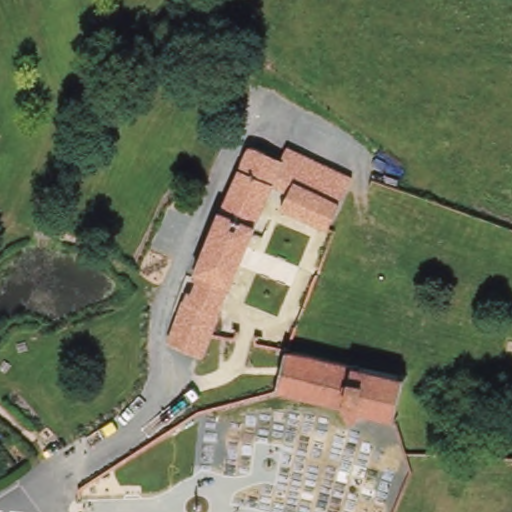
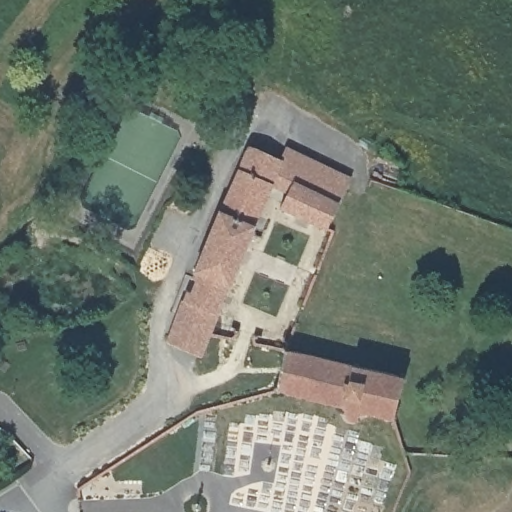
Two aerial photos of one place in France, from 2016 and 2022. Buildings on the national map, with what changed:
unchanged [(208,0),(235,35),(222,46),(192,3),(195,0),(208,0)]
unchanged [(247,145),(280,160),(275,171),(275,173),(272,179),(271,181),(263,197),(267,199),(265,204),(262,202),(259,208),(252,223),(231,214),(219,209),(247,145)]
unchanged [(284,149),(306,156),(350,173),(344,185),(338,198),(306,185),(275,173),(275,171),(280,160),(284,149)]
unchanged [(327,226),(278,204),(286,187),(271,181),(272,179),(275,173),(306,185),(338,198),(327,224),(327,226)]
unchanged [(60,202),(65,199),(74,202),(76,198),(100,206),(94,225),(69,219),(70,217),(61,214),(60,209),(60,202)]
unchanged [(231,214),(252,223),(225,282),(227,283),(205,332),(195,353),(192,352),(190,351),(164,340),(170,326),(177,311),(187,288),(191,289),(196,278),(193,277),(197,269),(193,268),(195,264),(201,250),(219,209),(231,214)]
unchanged [(269,353),(271,347),(277,348),(311,355),(361,367),(388,372),(389,369),(397,371),(395,384),(395,389),(414,394),(408,421),(390,418),(358,411),(357,411),(350,421),(345,423),(337,422),(333,417),(333,407),(325,404),(318,404),(273,395),(265,393),(265,388),(270,387),(273,354),(269,353)]

